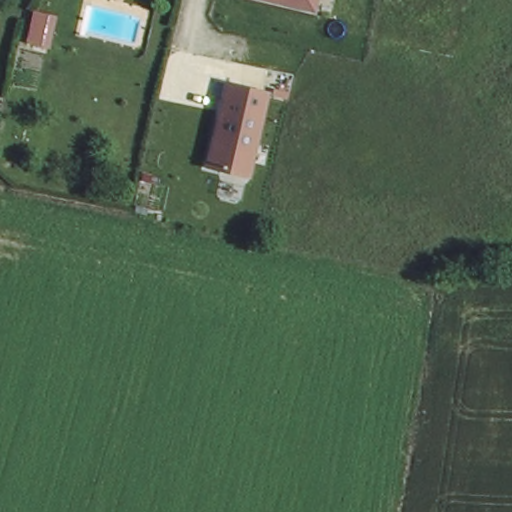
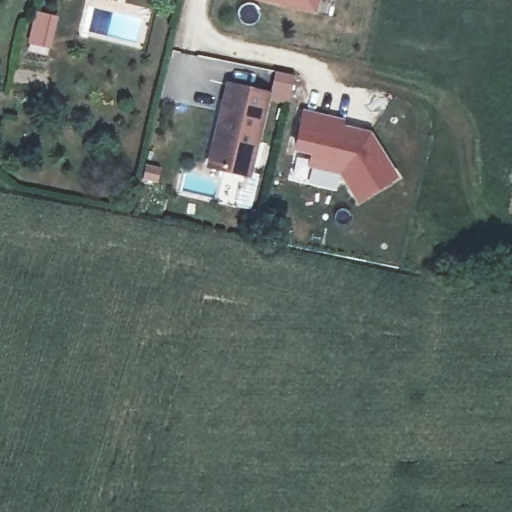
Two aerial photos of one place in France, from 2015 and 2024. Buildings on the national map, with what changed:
unchanged [(317,13),(259,0),(320,0),(317,13)]
new [(58,17),(50,50),(25,44),(34,12),(58,17)]
unchanged [(209,168),(228,82),(273,92),(276,70),(294,74),(289,105),(271,101),(252,176),(209,168)]
new [(344,119),(342,125),(369,131),(398,179),(356,204),(339,176),(307,170),(309,157),(292,154),(302,109),(344,119)]
new [(147,167),(159,170),(156,182),(144,180),(147,167)]

